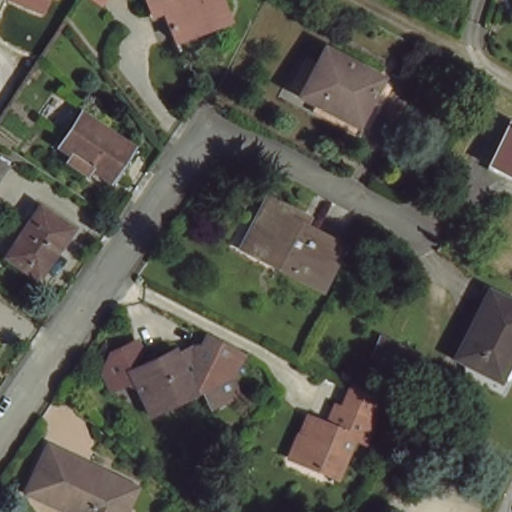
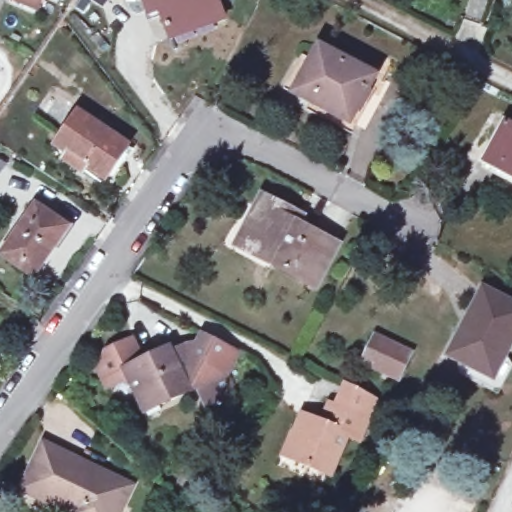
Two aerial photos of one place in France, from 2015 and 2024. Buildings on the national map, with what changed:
unchanged [(10,0),(47,0),(42,14),(10,0)]
unchanged [(170,38),(156,10),(147,15),(140,1),(143,0),(166,0),(169,5),(181,0),(214,0),(221,14),(170,38)]
unchanged [(342,118),(288,89),(311,45),(366,73),(342,118)]
unchanged [(130,145),(108,178),(85,160),(80,167),(57,151),(83,111),(130,145)]
unchanged [(512,180),(480,164),(502,123),(512,128),(512,180)]
unchanged [(1,164),(0,165),(0,163),(1,164)]
unchanged [(290,215),(285,222),(327,244),(304,285),(262,263),(264,258),(232,240),(256,197),(290,215)]
unchanged [(68,224),(35,274),(2,252),(37,203),(68,224)]
unchanged [(447,351),(480,287),(512,304),(512,328),(487,373),(447,351)]
unchanged [(135,408),(119,376),(99,386),(90,369),(97,349),(118,339),(129,361),(160,347),(163,354),(177,346),(180,349),(187,347),(195,333),(230,352),(217,376),(225,391),(198,404),(190,387),(152,406),(137,413),(135,408)]
new [(360,364),(374,333),(413,351),(398,382),(360,364)]
unchanged [(339,433),(322,473),(272,451),(282,429),(287,431),(295,412),(320,423),(327,403),(357,416),(357,418),(378,428),(370,446),(350,436),(349,438),(339,433)]
unchanged [(37,442),(125,484),(112,512),(63,512),(64,511),(17,488),(37,442)]

